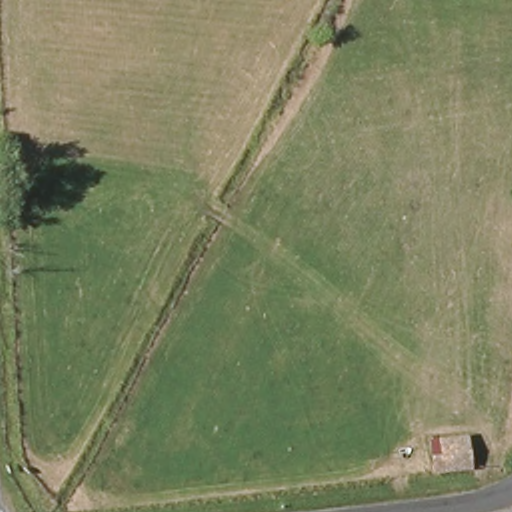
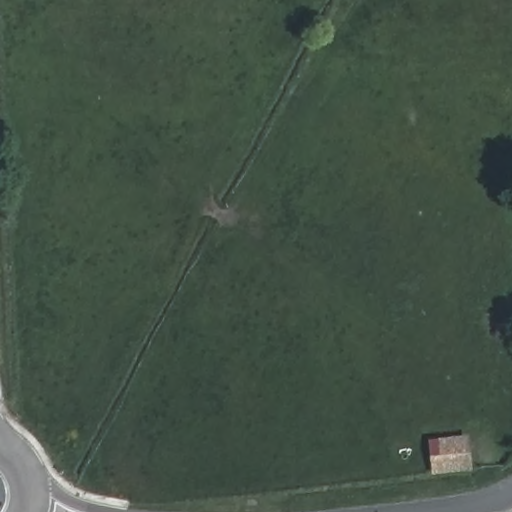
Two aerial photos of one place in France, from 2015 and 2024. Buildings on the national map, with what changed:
unchanged [(467,468),(433,472),(430,444),(465,439),(467,468)]

